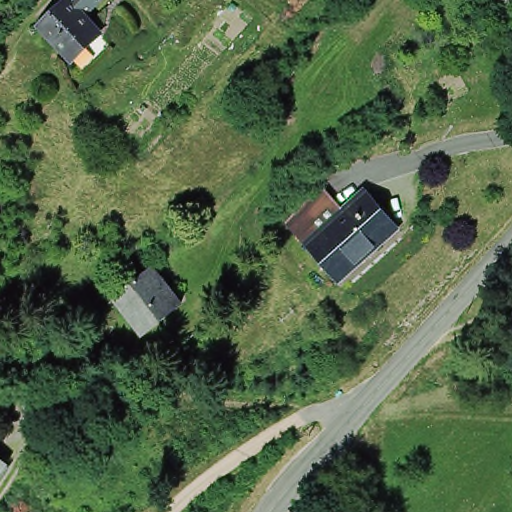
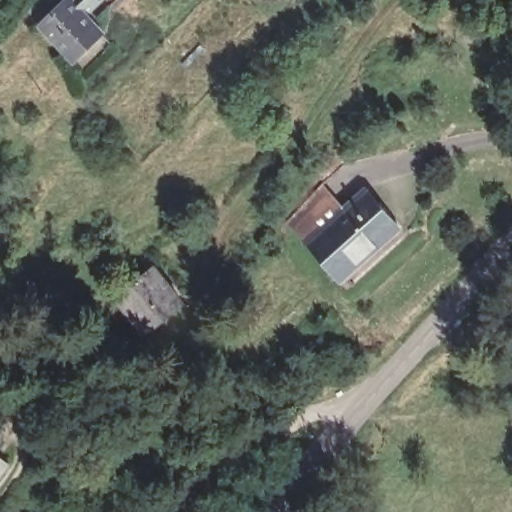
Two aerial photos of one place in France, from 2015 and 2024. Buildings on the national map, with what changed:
unchanged [(67,51),(43,25),(71,1),(72,0),(106,0),(91,13),(100,21),(95,26),(104,35),(76,62),(67,51)]
unchanged [(324,216),(331,226),(311,245),(289,223),(324,189),(338,202),(324,216)]
unchanged [(381,246),(375,241),(340,275),(311,245),(331,226),(324,216),(338,202),(346,210),(368,189),(402,226),(381,246)]
unchanged [(170,289),(178,297),(182,301),(162,319),(146,334),(141,329),(113,297),(146,265),(170,289)]
unchanged [(13,464),(0,482),(0,454),(9,461),(13,464)]

